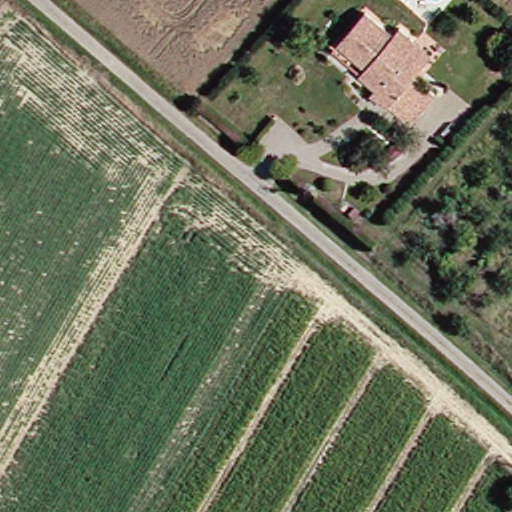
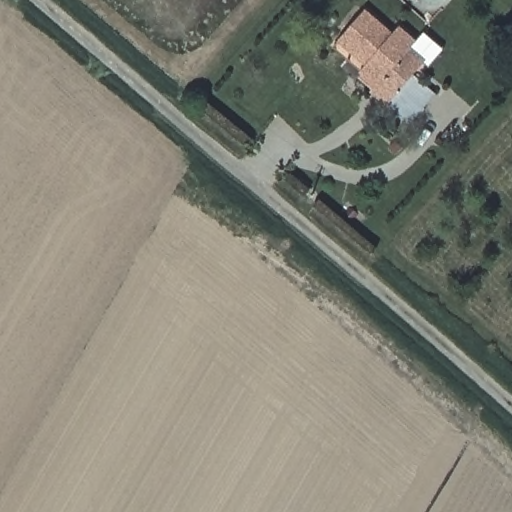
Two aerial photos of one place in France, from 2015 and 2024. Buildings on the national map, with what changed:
unchanged [(365,64),(342,43),(372,9),(397,32),(405,24),(422,39),(439,54),(431,63),(419,76),(440,95),(413,126),(377,94),(355,74),(365,64)]

